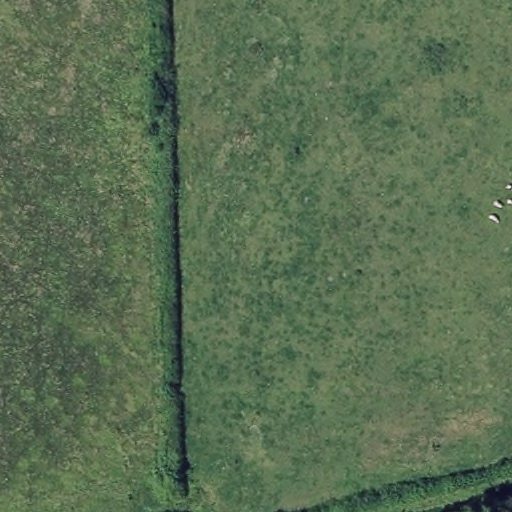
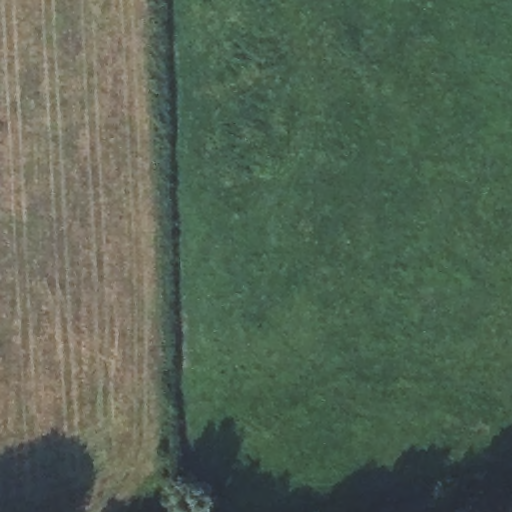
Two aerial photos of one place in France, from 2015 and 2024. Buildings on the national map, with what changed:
[]

